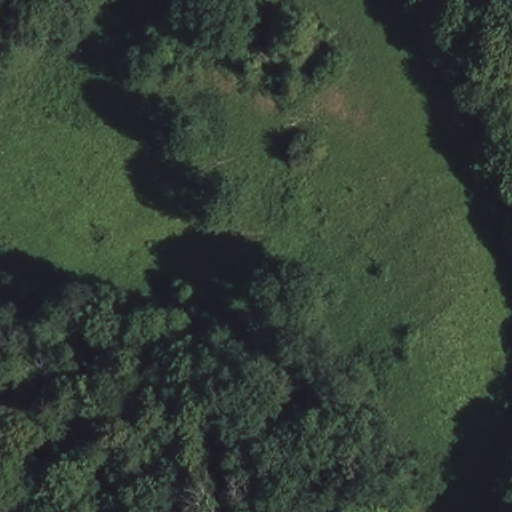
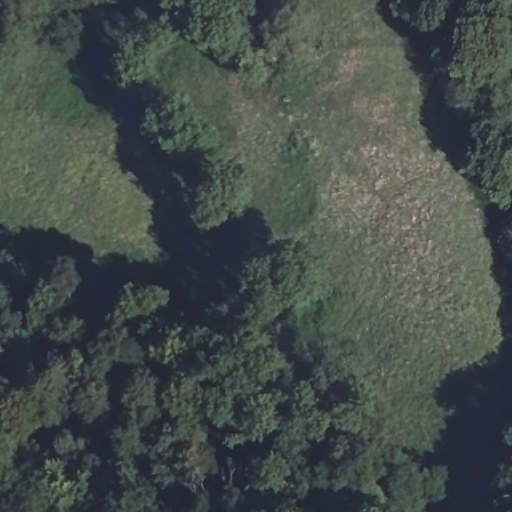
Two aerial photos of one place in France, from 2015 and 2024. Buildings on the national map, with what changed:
unchanged [(240,31),(257,26),(275,21),(287,60),(268,65),(251,70),(240,31)]

